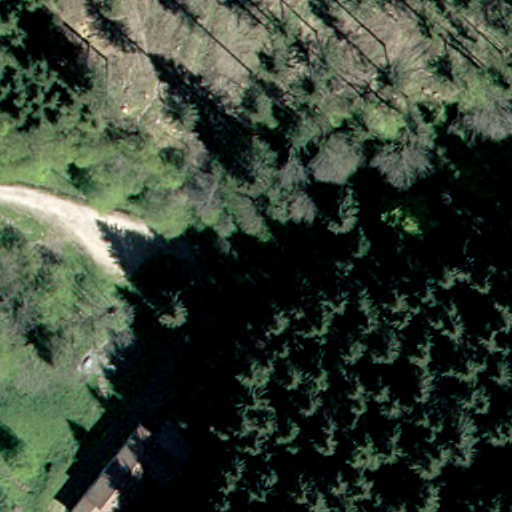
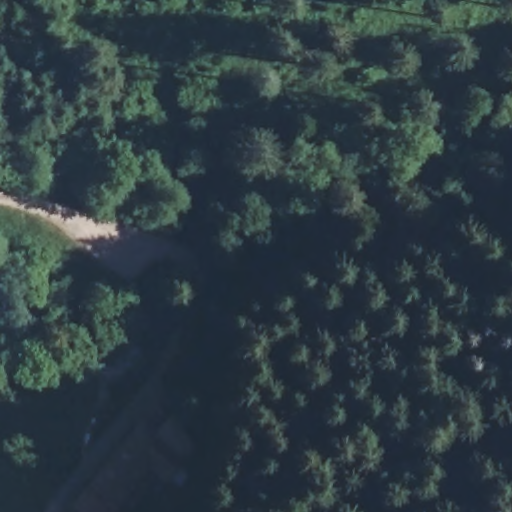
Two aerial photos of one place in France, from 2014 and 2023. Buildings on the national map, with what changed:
unchanged [(137,415),(153,428),(168,415),(190,440),(162,473),(147,460),(110,502),(121,512),(83,512),(68,497),(137,415)]

